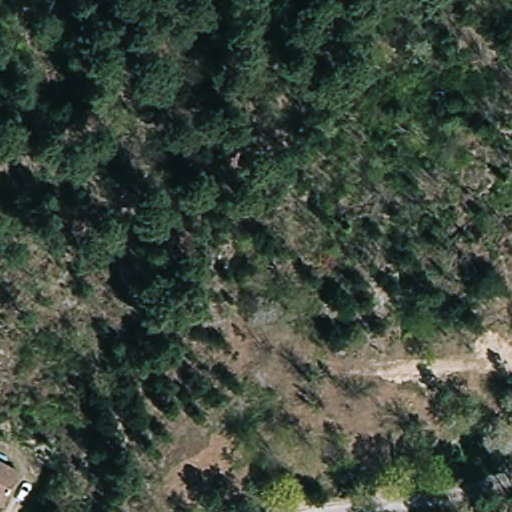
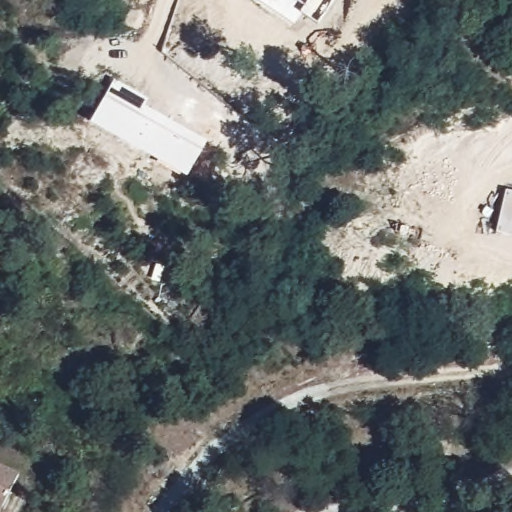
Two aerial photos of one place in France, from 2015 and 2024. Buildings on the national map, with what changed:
new [(295,25),(257,0),(332,0),(317,23),(303,14),(295,25)]
new [(207,141),(187,177),(90,123),(115,80),(148,100),(145,106),(207,141)]
new [(512,192),(512,237),(497,233),(507,190),(512,192)]
unchanged [(9,512),(0,512),(0,469),(26,488),(9,512)]

